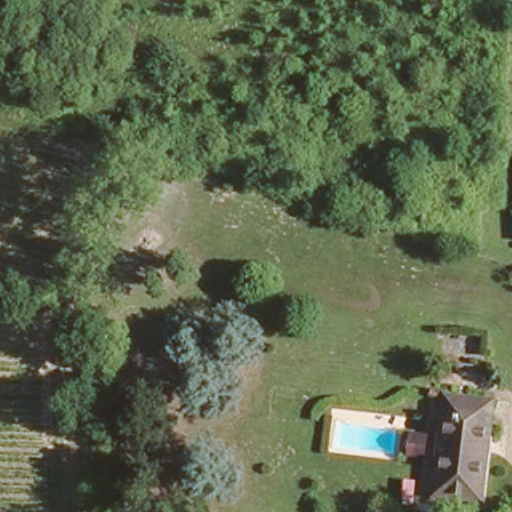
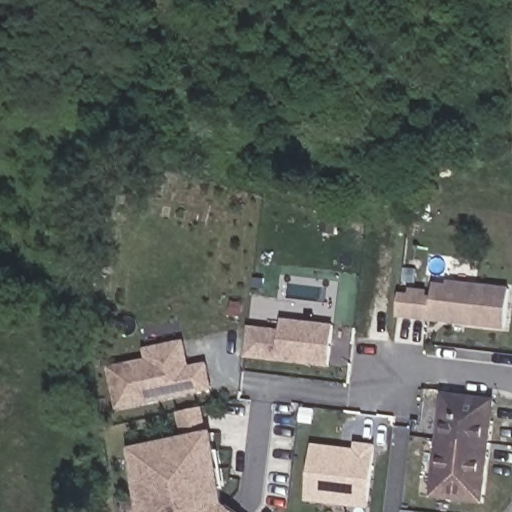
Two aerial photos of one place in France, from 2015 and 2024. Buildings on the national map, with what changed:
new [(400,291),(408,291),(409,287),(428,288),(428,295),(432,295),(434,282),(448,283),(448,279),(509,287),(506,329),(398,317),(400,291)]
new [(334,324),(329,367),(246,357),(248,324),(282,328),(283,318),(334,324)]
new [(186,340),(190,365),(210,362),(214,389),(117,409),(108,367),(147,359),(144,348),(186,340)]
unchanged [(440,391),(490,396),(482,496),(432,491),(440,391)]
new [(141,465),(139,449),(212,433),(215,452),(210,453),(215,488),(220,487),(223,506),(226,509),(224,512),(148,512),(146,496),(141,497),(136,466),(141,465)]
new [(315,446),(356,452),(358,444),(376,446),(368,507),(308,498),(315,446)]

